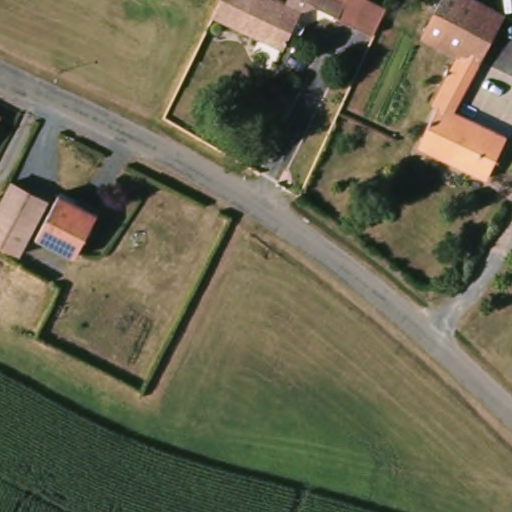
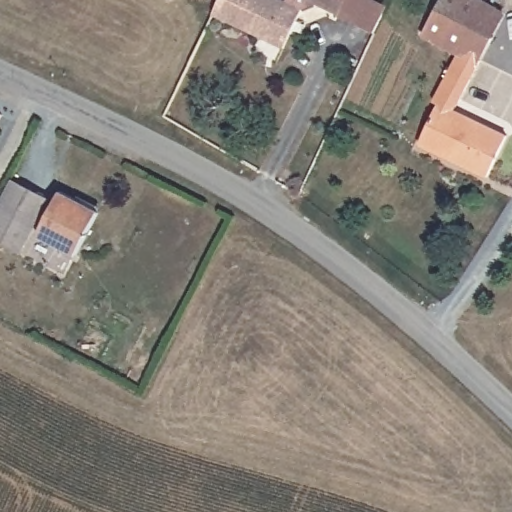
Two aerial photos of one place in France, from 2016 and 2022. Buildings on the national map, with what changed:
unchanged [(282,46),(235,25),(213,16),(221,0),(389,0),(376,28),(318,3),(300,10),(282,46)]
unchanged [(485,4),(506,14),(494,38),(481,66),(452,53),(424,39),(441,0),(478,0),(485,4)]
unchanged [(452,53),(481,66),(456,114),(439,106),(432,102),(452,53)]
unchanged [(419,147),(438,108),(439,106),(456,114),(506,139),(487,179),(447,160),(426,150),(419,147)]
unchanged [(6,116),(0,128),(0,112),(6,116)]
unchanged [(77,259),(40,239),(63,198),(99,217),(77,259)]

